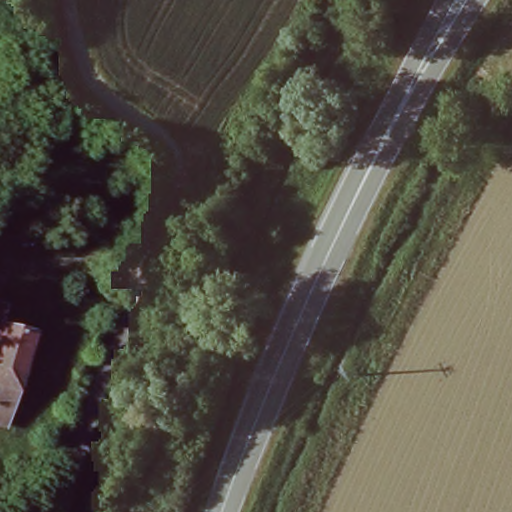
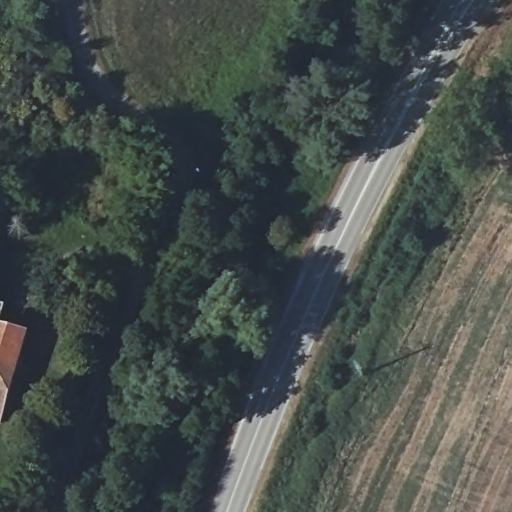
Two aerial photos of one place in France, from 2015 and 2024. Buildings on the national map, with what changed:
unchanged [(0,323),(33,334),(1,430),(0,430),(0,303),(2,304),(0,323)]

